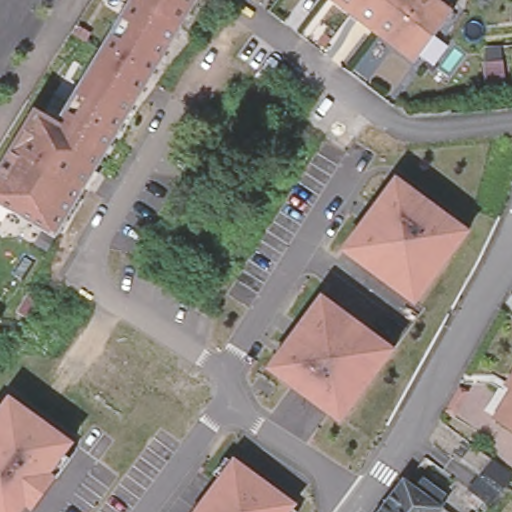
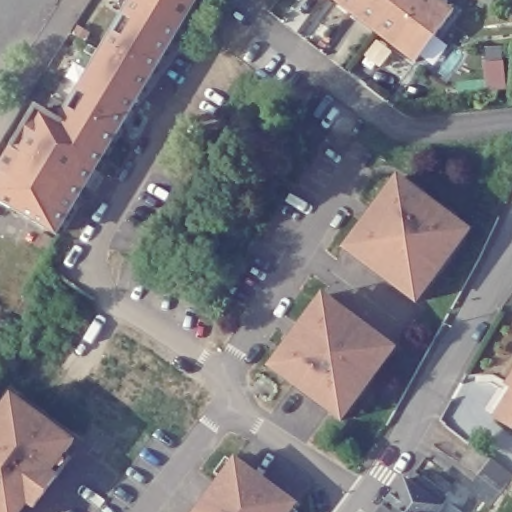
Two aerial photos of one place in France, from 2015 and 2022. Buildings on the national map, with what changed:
unchanged [(0,196),(0,170),(38,106),(62,118),(132,0),(195,0),(58,230),(0,196)]
unchanged [(450,6),(412,56),(342,0),(443,0),(450,6)]
unchanged [(400,178),(471,232),(418,303),(346,250),(400,178)]
unchanged [(396,350),(343,422),(271,369),(325,297),(396,350)]
unchanged [(495,378),(512,350),(512,425),(491,413),(480,407),(488,392),(495,378)]
unchanged [(37,416),(75,443),(52,473),(57,478),(35,509),(26,503),(20,512),(0,512),(0,414),(7,405),(12,397),(30,410),(37,416)]
unchanged [(469,489),(480,474),(494,455),(512,469),(512,474),(501,490),(490,505),(486,502),(479,512),(464,500),(471,491),(469,489)]
unchanged [(292,512),(198,512),(236,461),(297,505),(292,512)]
unchanged [(396,478),(398,480),(405,471),(414,478),(433,492),(426,502),(430,506),(426,512),(370,512),(380,500),(396,478)]

